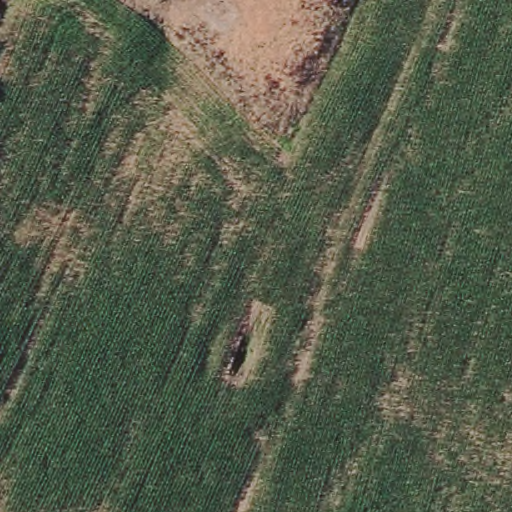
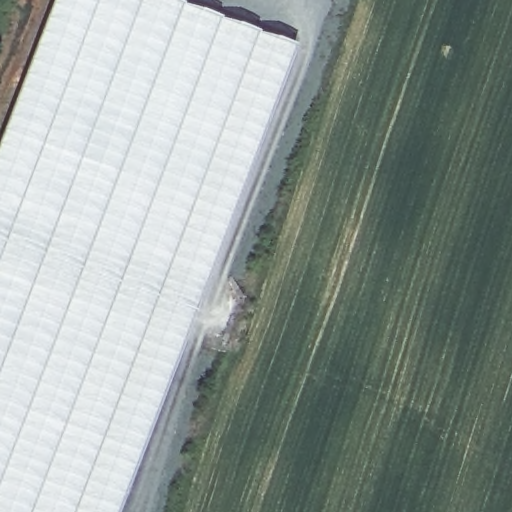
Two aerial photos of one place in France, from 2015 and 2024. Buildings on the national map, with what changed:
new [(118,512),(0,512),(0,139),(53,0),(168,0),(295,49),(118,512)]

